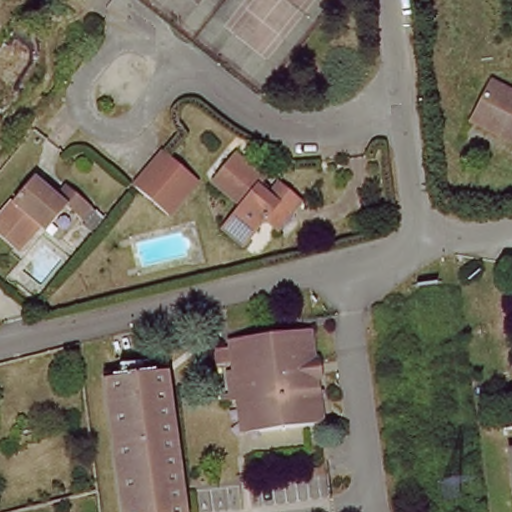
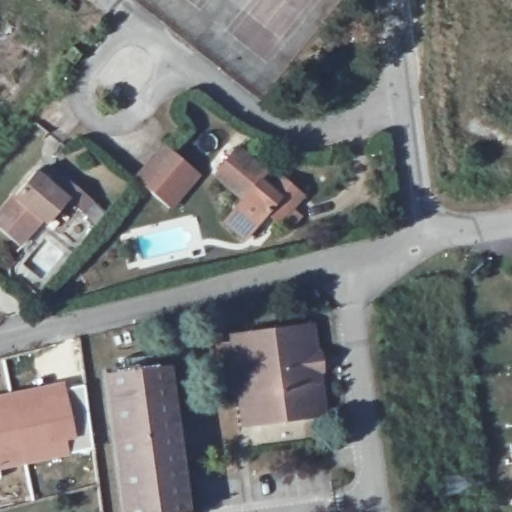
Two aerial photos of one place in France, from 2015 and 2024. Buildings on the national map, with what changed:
unchanged [(476,116),(499,72),(512,78),(512,134),(476,116)]
unchanged [(265,173),(276,182),(284,174),(307,192),(276,229),(259,217),(240,200),(247,191),(217,168),(238,143),(271,166),(265,173)]
unchanged [(135,185),(137,183),(148,169),(151,164),(164,148),(202,179),(188,194),(171,214),(135,185)]
unchanged [(89,202),(81,213),(67,202),(45,226),(36,219),(13,244),(0,234),(0,206),(30,172),(55,191),(63,181),(89,202)]
unchanged [(244,242),(222,226),(238,200),(259,217),(244,242)]
unchanged [(248,394),(232,395),(227,339),(242,338),(241,334),(320,325),(323,353),(330,352),(334,374),(327,374),(334,417),(271,424),(252,426),(248,394)]
unchanged [(126,372),(124,360),(156,358),(157,369),(172,368),(175,385),(171,386),(186,512),(127,512),(113,373),(126,372)]
new [(64,380),(65,385),(74,438),(67,440),(70,456),(0,471),(0,393),(64,380)]
new [(84,382),(93,450),(70,456),(67,440),(74,438),(65,385),(84,382)]
unchanged [(510,444),(512,444),(512,457),(510,444)]
new [(1,479),(0,480),(0,475),(1,479)]

